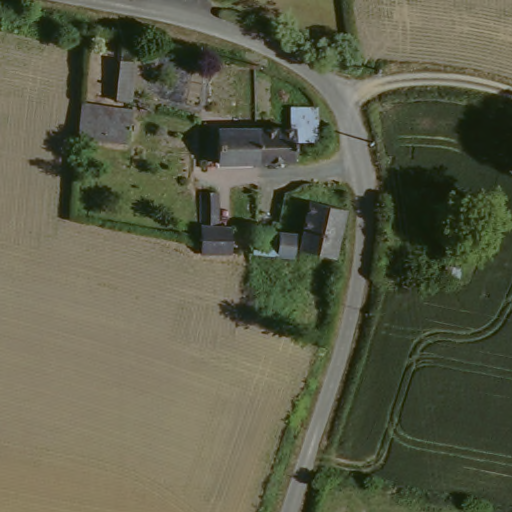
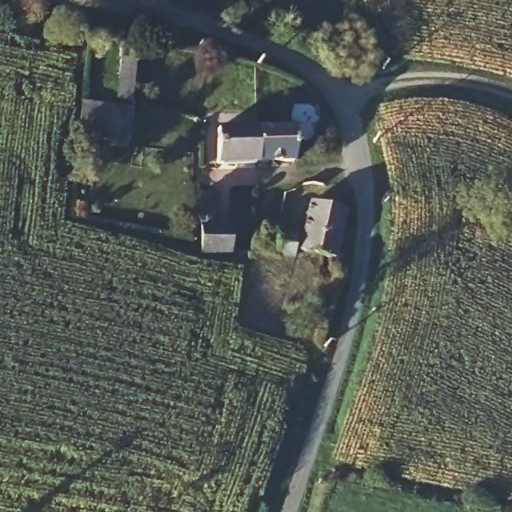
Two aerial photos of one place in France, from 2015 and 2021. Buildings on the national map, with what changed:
unchanged [(133,61),(132,102),(116,99),(119,59),(121,48),(134,49),(133,61)]
unchanged [(134,113),(132,127),(128,147),(79,139),(86,105),(134,113)]
unchanged [(286,134),(286,116),(311,114),(311,146),(286,147),(286,167),(249,167),(250,134),(286,134)]
unchanged [(210,167),(210,132),(250,134),(249,167),(210,167)]
unchanged [(198,191),(216,192),(216,230),(230,231),(229,257),(199,254),(199,251),(199,237),(198,191)]
unchanged [(311,202),(345,207),(337,256),(304,249),(311,202)]
unchanged [(265,231),(297,234),(295,257),(251,254),(254,231),(265,231)]

